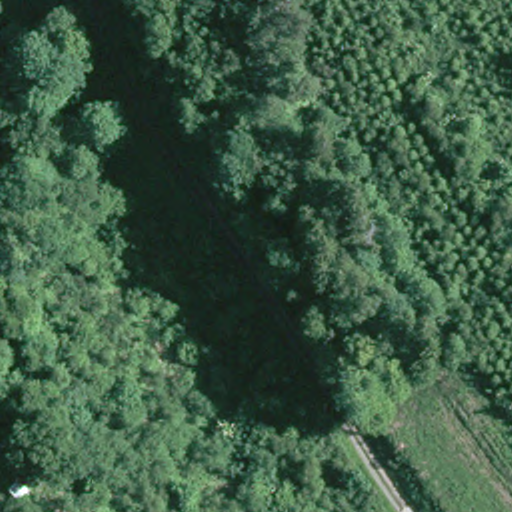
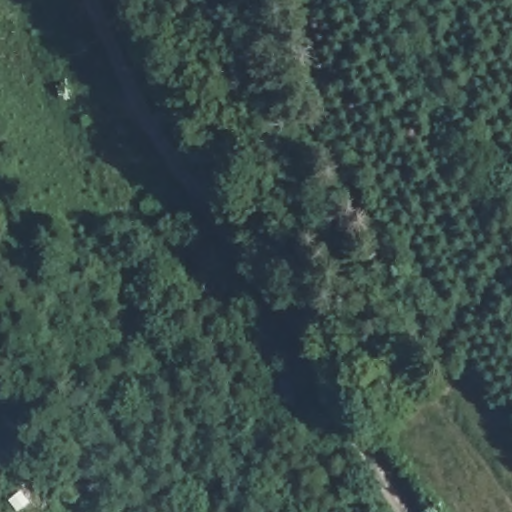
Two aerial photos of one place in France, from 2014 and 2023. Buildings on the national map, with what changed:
unchanged [(52,66),(89,43),(100,64),(91,69),(124,123),(97,141),(52,66)]

